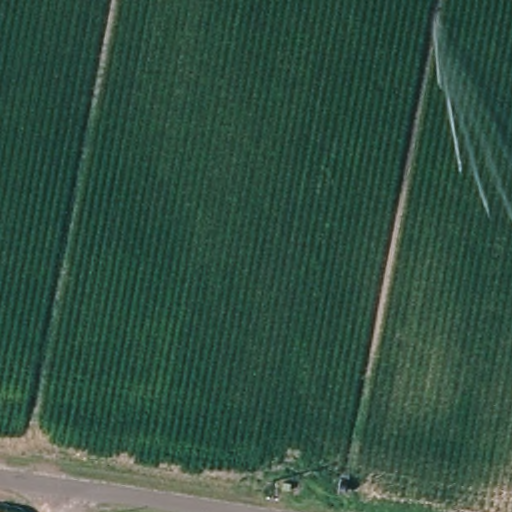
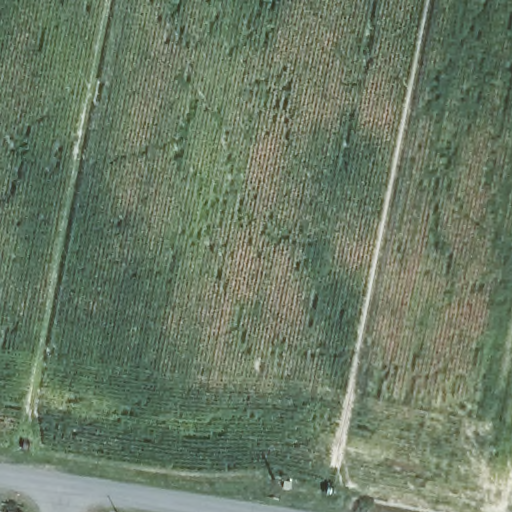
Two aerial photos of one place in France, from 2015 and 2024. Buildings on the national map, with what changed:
unchanged [(305,484),(298,482),(299,475),(307,477),(305,484)]

